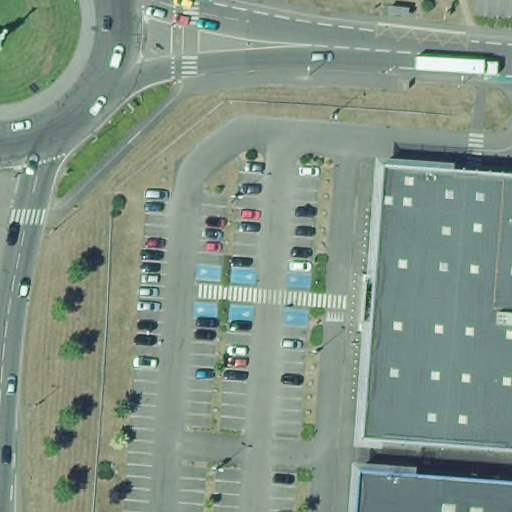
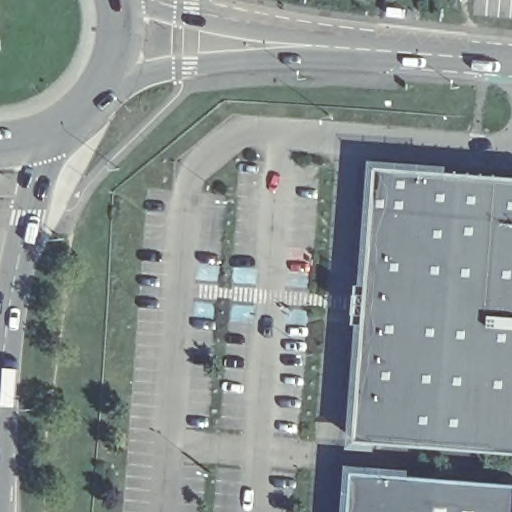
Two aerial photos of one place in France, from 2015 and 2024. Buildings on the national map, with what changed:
unchanged [(512,458),(446,454),(353,447),(362,337),(353,336),(357,281),(366,282),(374,172),(512,182),(512,458)]
unchanged [(512,483),(512,512),(348,512),(351,471),(512,483)]

